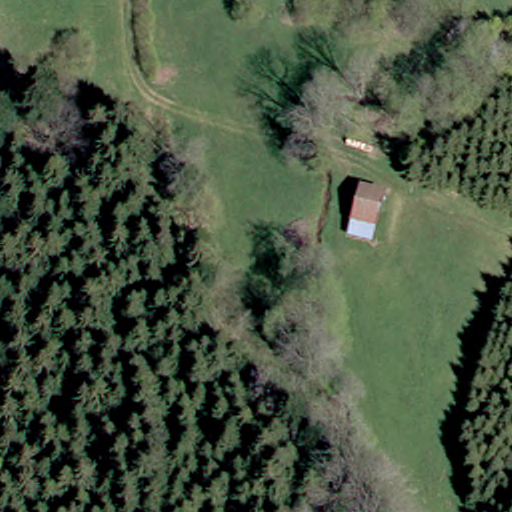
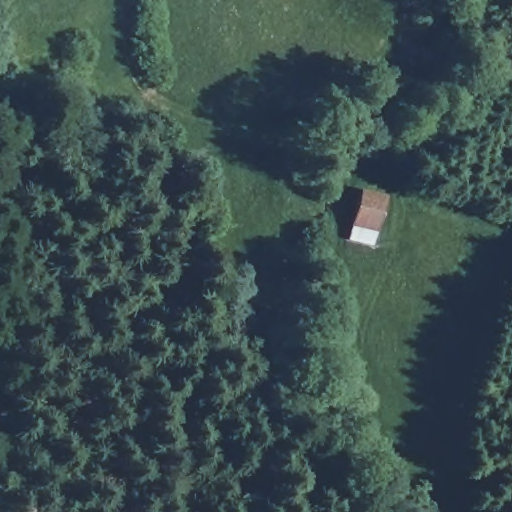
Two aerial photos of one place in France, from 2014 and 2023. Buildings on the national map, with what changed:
unchanged [(354,205),(376,199),(385,230),(362,237),(354,205)]

